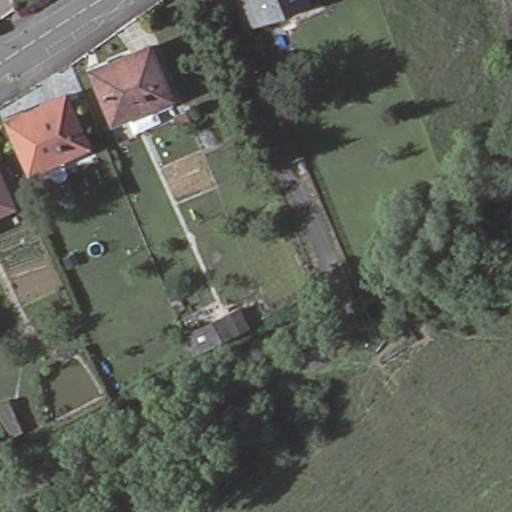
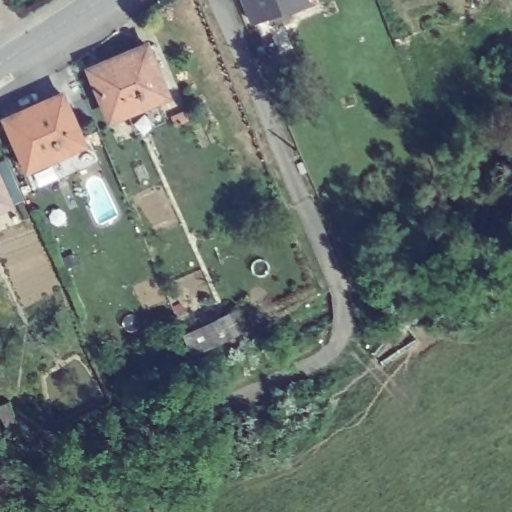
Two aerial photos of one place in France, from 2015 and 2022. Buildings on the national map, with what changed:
unchanged [(292,10),(294,14),(262,27),(250,0),(308,0),(310,3),(292,10)]
unchanged [(148,43),(170,91),(115,115),(94,67),(148,43)]
unchanged [(64,94),(86,144),(31,168),(9,119),(64,94)]
unchanged [(0,202),(0,173),(11,197),(0,202)]
unchanged [(235,311),(243,328),(188,355),(180,337),(235,311)]

